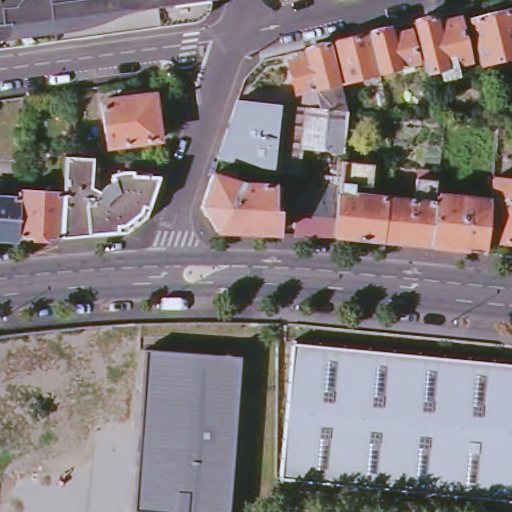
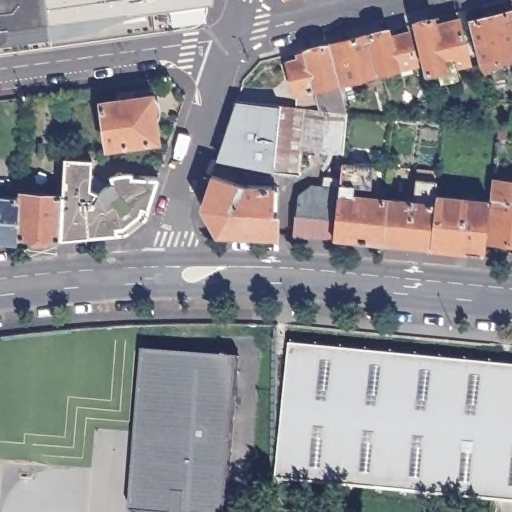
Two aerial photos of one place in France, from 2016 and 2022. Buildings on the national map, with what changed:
unchanged [(180,16),(167,19),(167,26),(121,32),(120,25),(109,26),(109,34),(72,39),(69,37),(65,32),(32,36),(32,41),(29,45),(0,49),(0,0),(200,0),(179,3),(180,16)]
unchanged [(458,5),(470,56),(455,59),(458,70),(444,73),(440,64),(425,66),(412,16),(458,5)]
unchanged [(510,6),(512,13),(512,50),(480,59),(472,25),(470,15),(510,6)]
unchanged [(387,22),(389,30),(408,25),(417,59),(380,65),(370,27),(387,22)]
unchanged [(370,27),(380,65),(339,75),(329,37),(370,27)]
unchanged [(335,77),(339,75),(345,104),(295,99),(296,86),(287,55),(305,50),(302,43),(305,42),(325,38),(335,77)]
unchanged [(279,97),(273,160),(219,148),(237,94),(279,97)]
unchanged [(156,96),(160,120),(157,121),(160,140),(107,146),(102,103),(156,96)]
unchanged [(295,99),(345,104),(342,145),(302,140),(300,165),(274,162),(273,160),(279,97),(295,99)]
unchanged [(93,158),(90,189),(99,192),(112,183),(129,179),(129,176),(160,180),(147,218),(127,235),(62,241),(65,190),(67,155),(93,158)]
unchanged [(234,164),(232,174),(270,176),(270,204),(279,204),(279,226),(217,225),(202,199),(215,157),(234,164)]
unchanged [(315,182),(322,184),(321,171),(340,172),(338,185),(334,229),(296,227),(299,194),(315,182)]
unchanged [(415,194),(417,171),(438,173),(437,188),(436,196),(432,239),(381,233),(385,191),(415,194)]
unchanged [(338,185),(385,191),(381,233),(334,229),(338,185)]
unchanged [(490,194),(484,244),(432,239),(436,196),(437,188),(490,194)]
unchanged [(65,190),(62,241),(17,239),(20,202),(20,189),(65,190)]
unchanged [(512,191),(512,235),(489,232),(494,189),(512,191)]
unchanged [(17,243),(0,243),(0,202),(20,202),(17,239),(17,243)]
unchanged [(512,365),(512,500),(280,478),(292,344),(512,365)]
unchanged [(145,353),(240,360),(228,512),(133,512),(145,353)]

